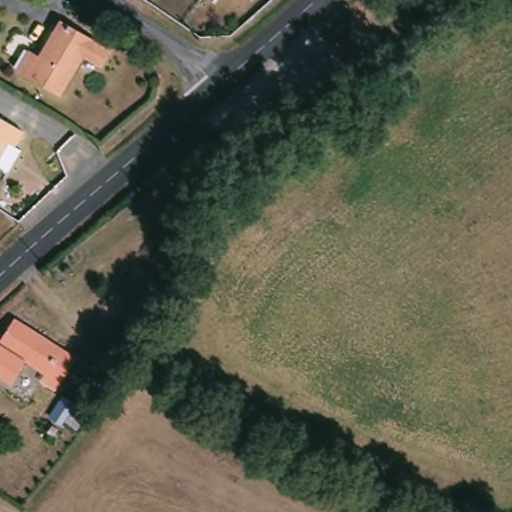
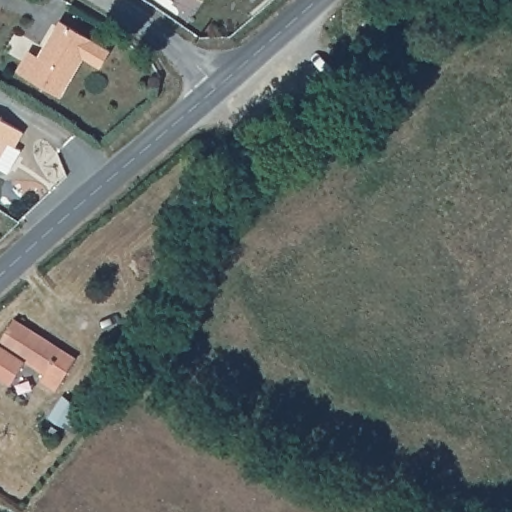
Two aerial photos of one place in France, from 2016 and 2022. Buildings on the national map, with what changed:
unchanged [(62,22),(94,46),(52,99),(21,74),(62,22)]
unchanged [(16,140),(25,145),(10,168),(0,163),(0,110),(26,125),(16,140)]
unchanged [(0,380),(0,339),(12,318),(39,335),(22,367),(10,385),(0,380)]
unchanged [(79,358),(59,387),(22,367),(39,335),(79,358)]

